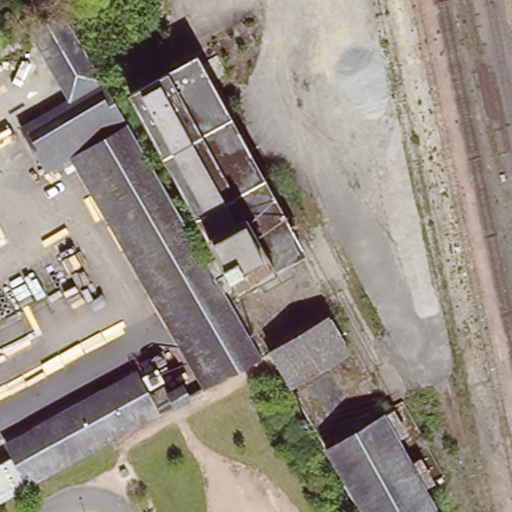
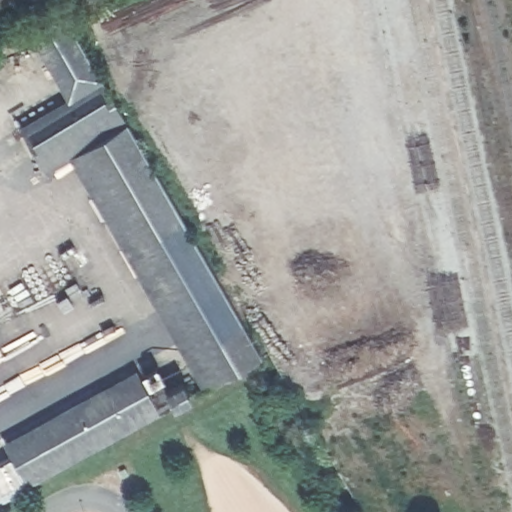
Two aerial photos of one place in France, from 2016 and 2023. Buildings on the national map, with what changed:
unchanged [(104,83),(127,122),(260,357),(202,388),(185,361),(70,158),(45,171),(17,126),(67,99),(28,32),(63,15),(104,83)]
demolished [(128,90),(147,79),(195,52),(302,250),(290,257),(295,272),(261,289),(255,278),(235,287),(227,272),(220,262),(203,232),(195,214),(128,90)]
unchanged [(27,486),(10,456),(7,449),(140,376),(148,393),(159,414),(27,486)]
demolished [(325,453),(383,419),(434,512),(361,512),(325,453)]
unchanged [(0,462),(10,456),(27,486),(0,501),(0,462)]

